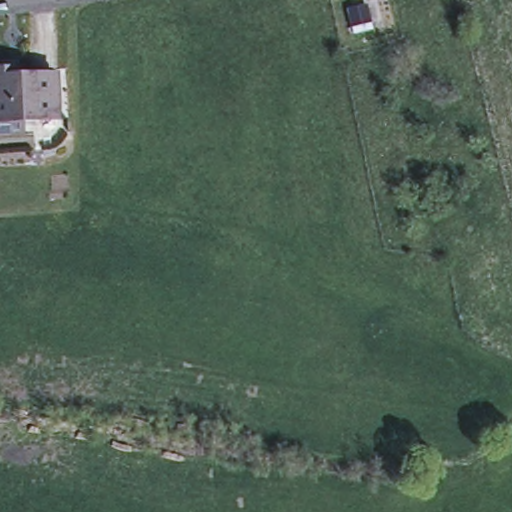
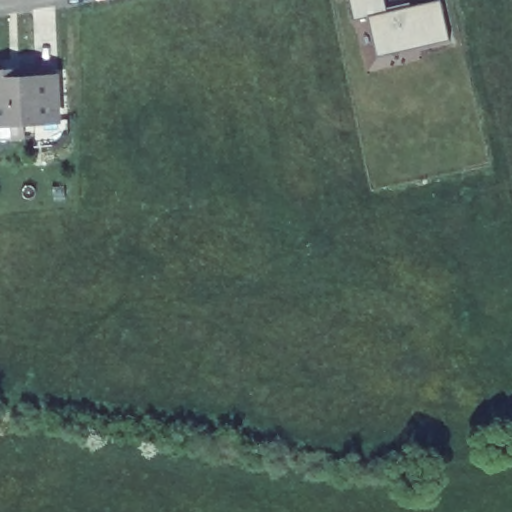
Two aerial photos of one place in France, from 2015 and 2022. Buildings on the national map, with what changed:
new [(377,55),(368,18),(354,20),(350,0),(385,0),(387,7),(410,2),(411,6),(438,0),(441,0),(450,39),(377,55)]
unchanged [(0,131),(0,66),(17,65),(17,72),(61,70),(63,114),(29,115),(30,130),(0,131)]

